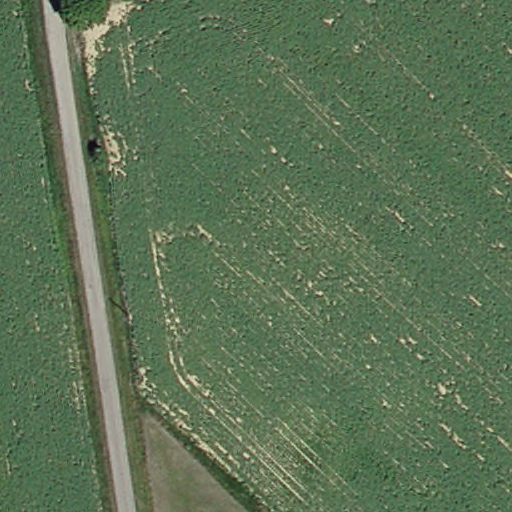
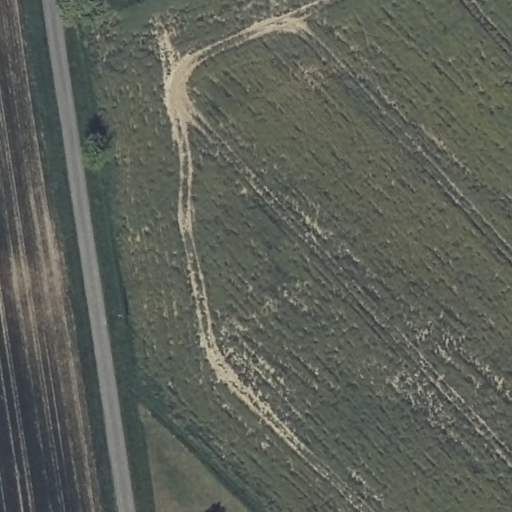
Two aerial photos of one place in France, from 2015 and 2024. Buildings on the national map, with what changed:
[]

